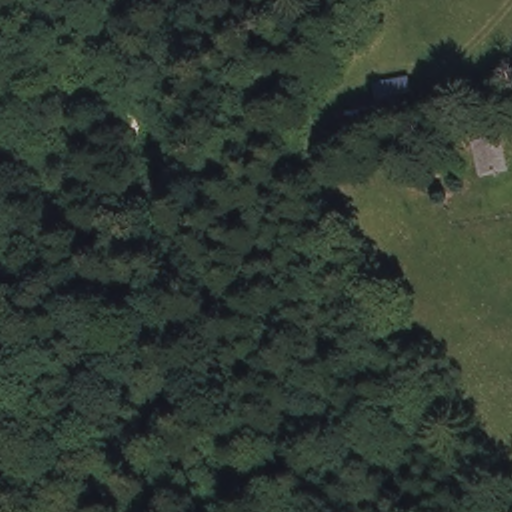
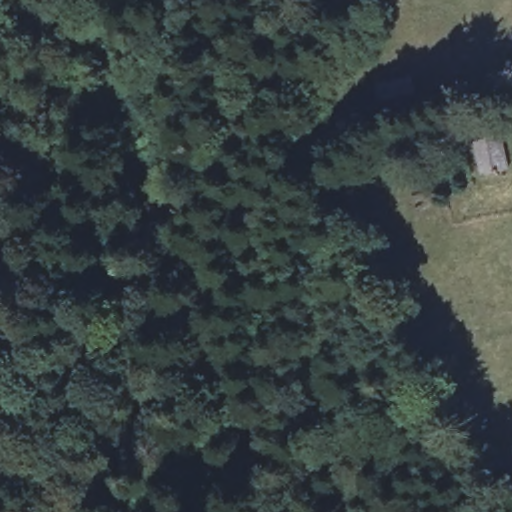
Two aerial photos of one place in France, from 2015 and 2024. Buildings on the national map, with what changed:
unchanged [(505,131),(512,168),(512,170),(486,174),(477,139),(505,131)]

